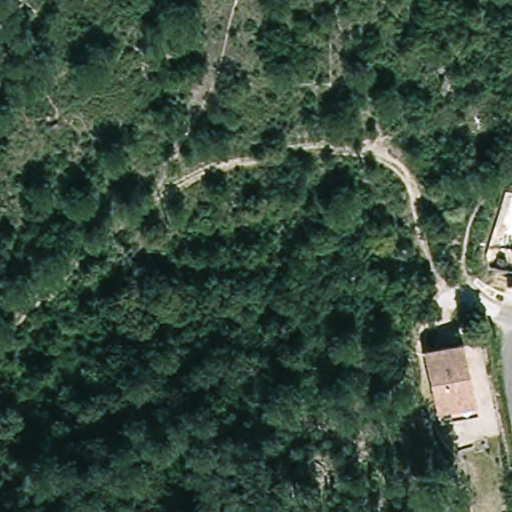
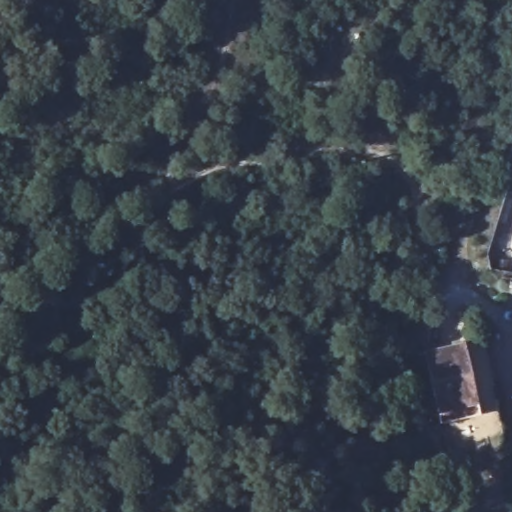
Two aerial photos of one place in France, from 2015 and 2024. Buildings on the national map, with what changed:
unchanged [(482,413),(455,417),(442,419),(440,407),(430,348),(470,342),(480,401),(480,402),(482,413)]

